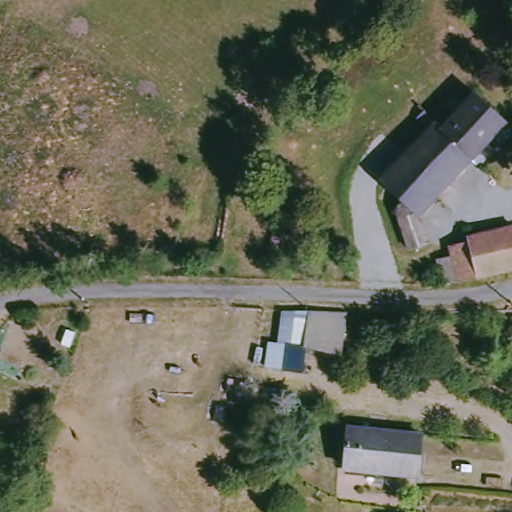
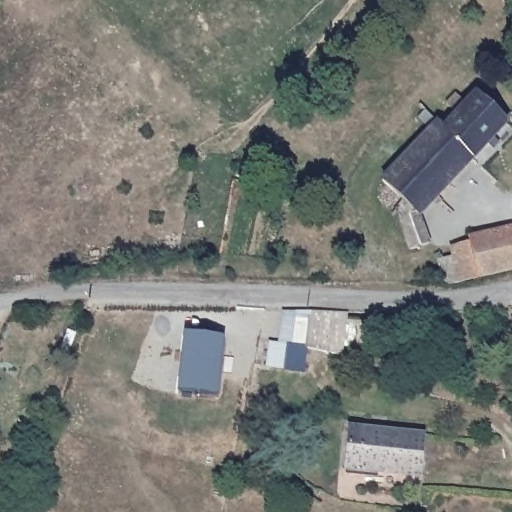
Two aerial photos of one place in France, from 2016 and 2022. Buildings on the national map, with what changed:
unchanged [(398,211),(409,207),(382,178),(437,120),(442,125),(476,90),(507,120),(419,215),(428,244),(410,250),(398,211)]
unchanged [(435,259),(452,255),(450,245),(467,241),(467,235),(512,225),(512,268),(447,282),(441,282),(435,259)]
unchanged [(338,357),(312,354),(317,317),(318,311),(345,311),(338,357)]
unchanged [(312,354),(308,375),(266,368),(270,345),(288,348),(295,315),(317,317),(312,354)]
new [(179,391),(185,331),(224,336),(217,395),(179,391)]
unchanged [(419,435),(416,473),(349,466),(352,425),(419,435)]

